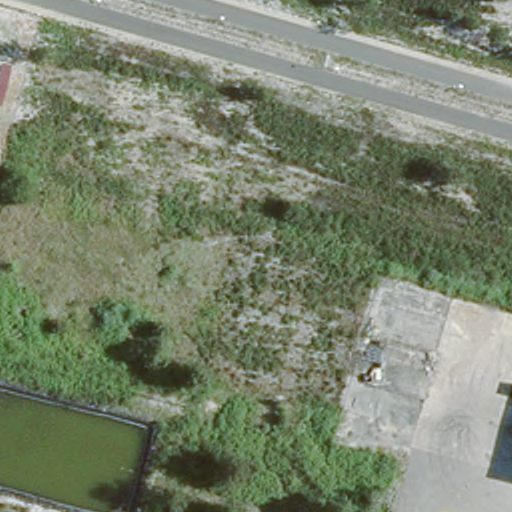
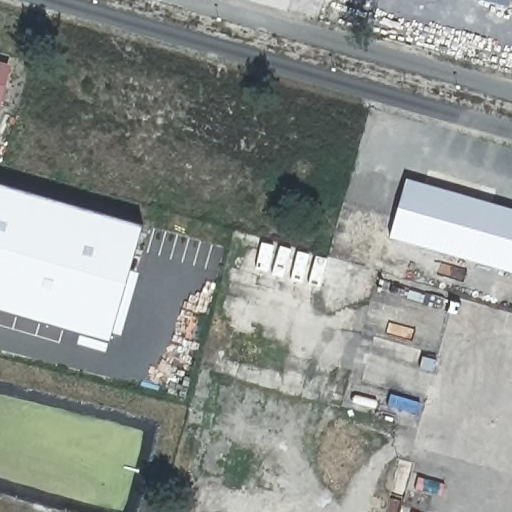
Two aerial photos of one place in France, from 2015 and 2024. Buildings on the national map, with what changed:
new [(482,0),(510,0),(508,7),(482,0)]
unchanged [(0,99),(0,64),(8,66),(0,99)]
new [(512,213),(512,275),(386,239),(402,182),(512,213)]
new [(129,271),(138,274),(120,336),(111,333),(109,341),(107,352),(79,343),(81,333),(0,310),(0,185),(141,226),(129,271)]

